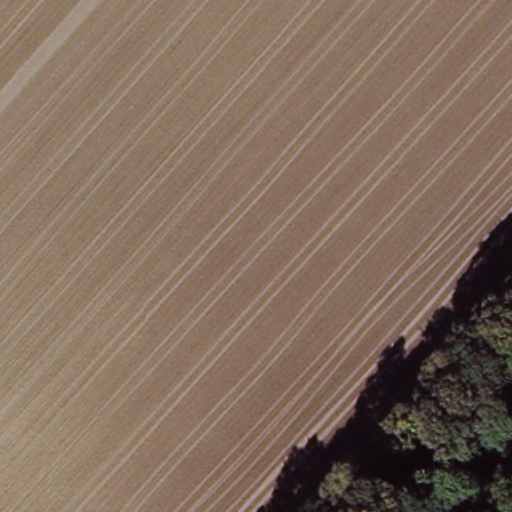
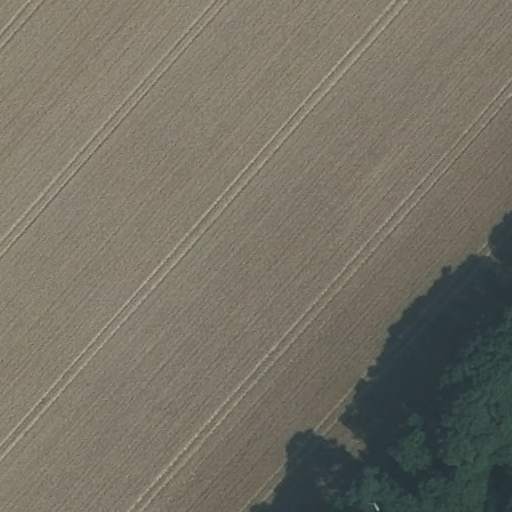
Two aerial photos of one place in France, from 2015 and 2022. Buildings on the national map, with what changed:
[]

